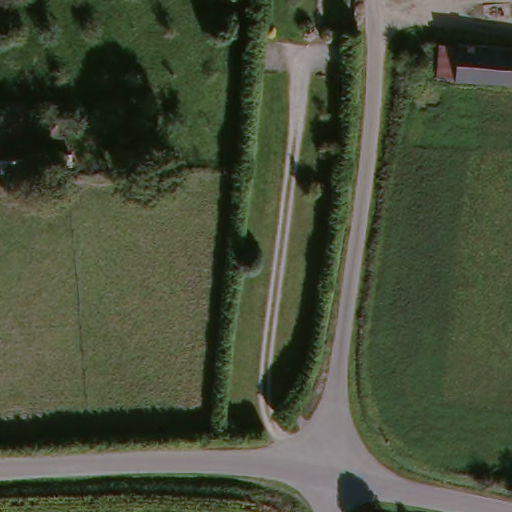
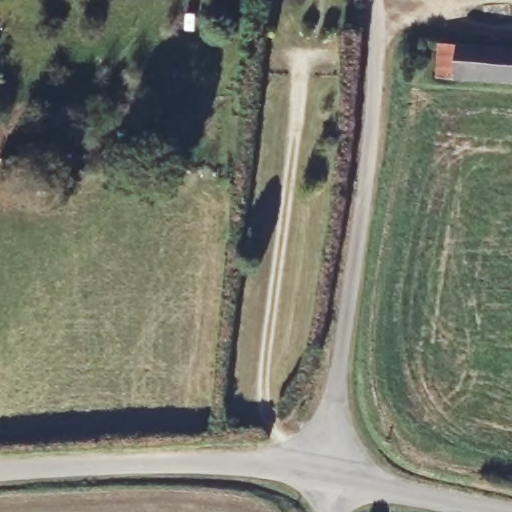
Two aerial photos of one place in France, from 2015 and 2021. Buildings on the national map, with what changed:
unchanged [(399,44),(413,44),(413,55),(408,58),(404,57),(399,57),(399,44)]
unchanged [(512,84),(479,81),(455,79),(435,78),(440,44),(457,44),(488,45),(512,49),(512,84)]

